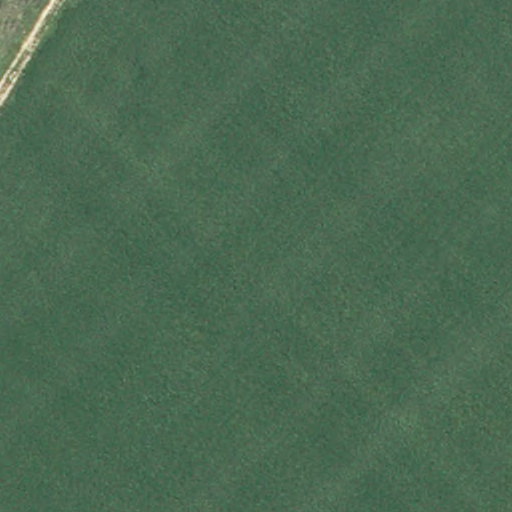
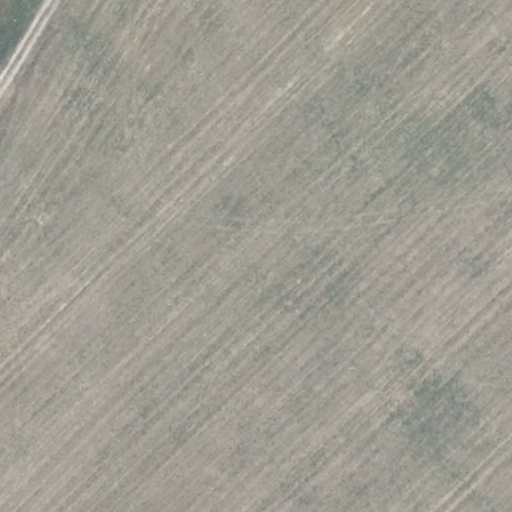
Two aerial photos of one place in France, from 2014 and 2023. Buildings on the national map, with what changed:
[]

